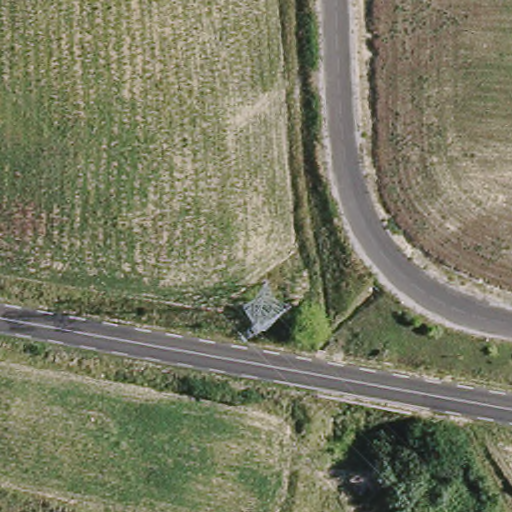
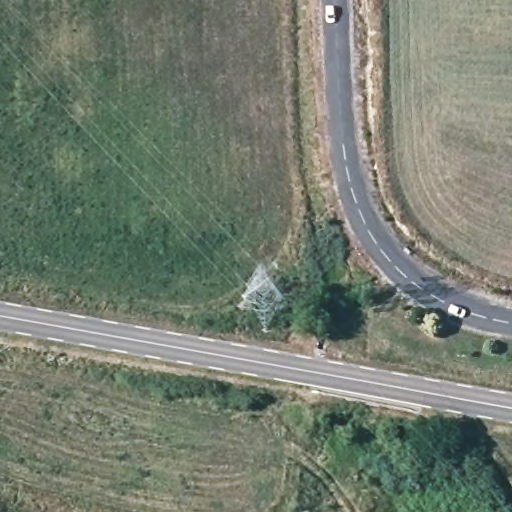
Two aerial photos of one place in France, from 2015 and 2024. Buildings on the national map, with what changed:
[]

